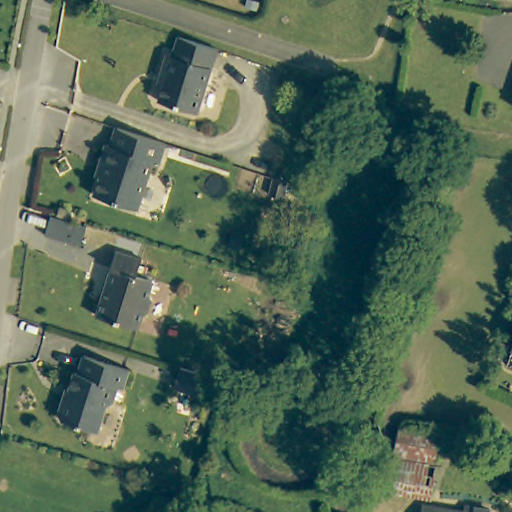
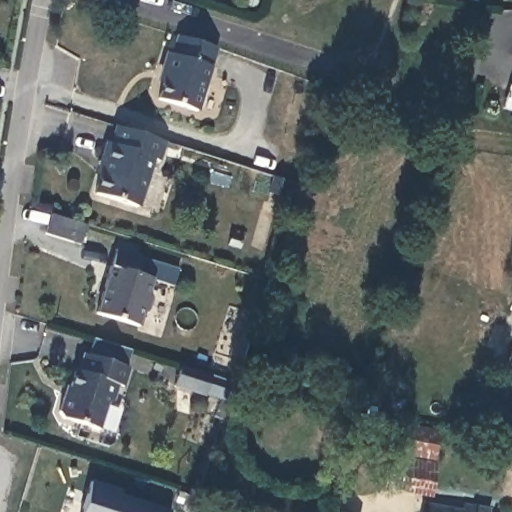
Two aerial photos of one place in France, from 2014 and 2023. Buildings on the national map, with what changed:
unchanged [(198,113),(159,101),(169,71),(164,69),(169,54),(175,55),(180,38),(181,34),(221,47),(218,55),(198,113)]
unchanged [(98,172),(92,170),(102,144),(107,145),(113,127),(165,143),(160,159),(153,156),(136,204),(91,190),(98,172)]
unchanged [(55,221),(90,231),(84,247),(50,237),(55,221)]
unchanged [(120,245),(143,252),(138,270),(159,275),(153,292),(159,294),(152,314),(147,313),(142,328),(100,316),(120,245)]
unchanged [(60,405),(65,407),(76,378),(79,379),(88,358),(129,373),(121,391),(115,389),(107,416),(103,414),(93,432),(55,417),(60,405)]
unchanged [(179,370),(211,379),(205,399),(174,391),(179,370)]
unchanged [(400,428),(439,434),(434,463),(395,457),(400,428)]
unchanged [(395,457),(434,463),(428,498),(389,491),(395,457)]
new [(170,512),(81,512),(90,482),(123,492),(121,496),(170,512)]
unchanged [(329,508),(350,512),(328,512),(329,508)]
unchanged [(421,508),(465,512),(420,512),(421,508)]

